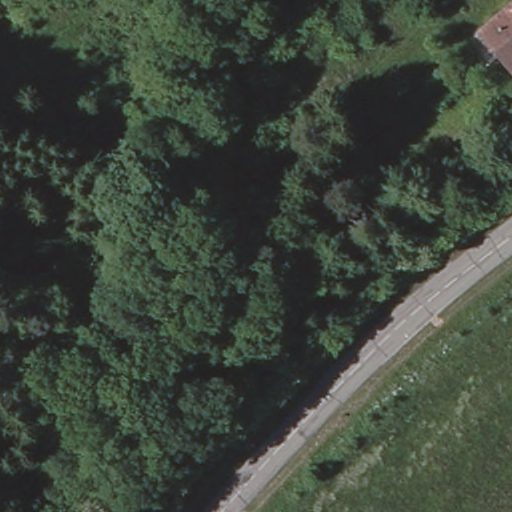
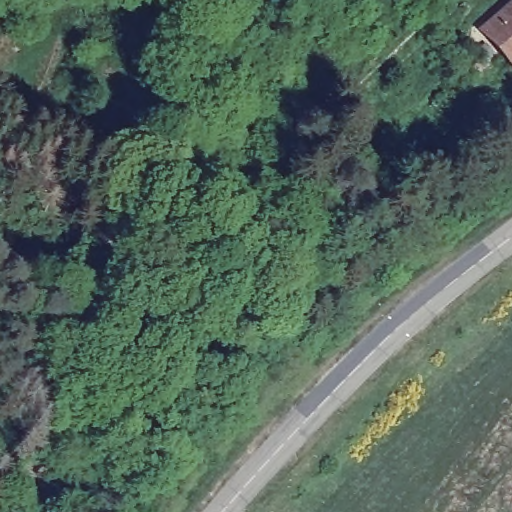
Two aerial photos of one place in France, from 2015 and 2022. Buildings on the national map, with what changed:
unchanged [(506,62),(484,34),(512,11),(512,58),(506,62)]

